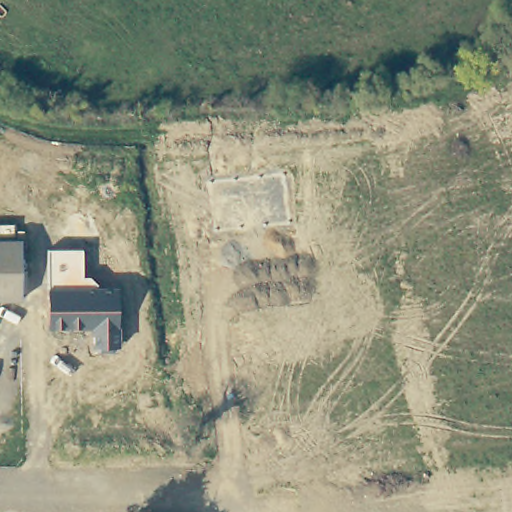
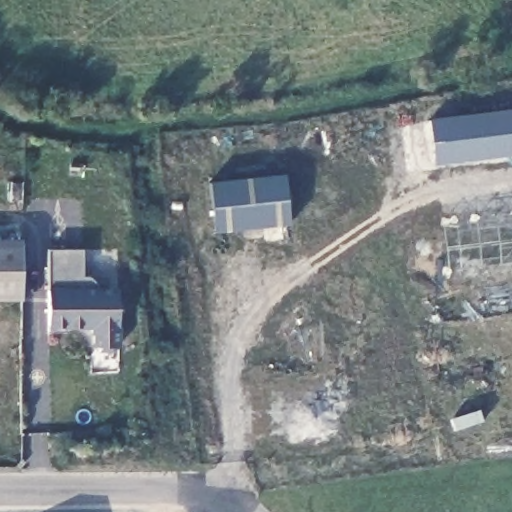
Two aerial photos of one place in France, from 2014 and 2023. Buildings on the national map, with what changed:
new [(428,120),(512,108),(512,154),(434,165),(428,120)]
new [(291,225),(215,234),(209,183),(284,174),(291,225)]
unchanged [(120,348),(93,348),(93,329),(48,328),(48,249),(82,248),(82,277),(92,277),(99,286),(118,286),(120,348)]
unchanged [(19,305),(0,304),(0,249),(21,250),(19,305)]

